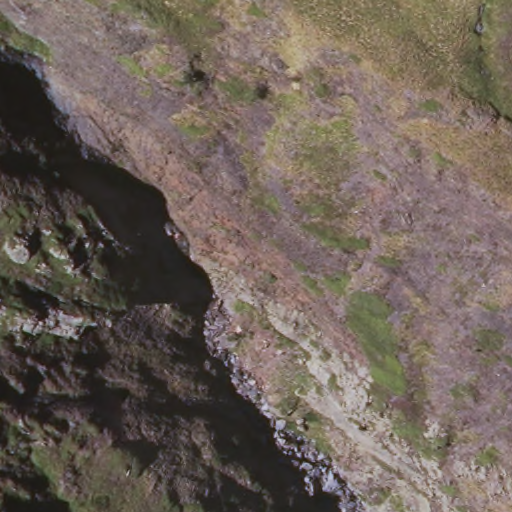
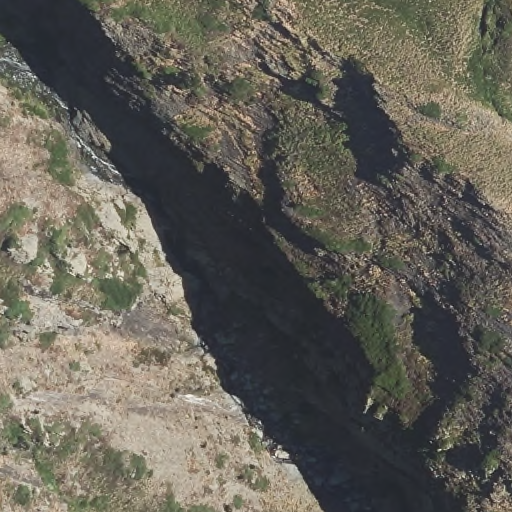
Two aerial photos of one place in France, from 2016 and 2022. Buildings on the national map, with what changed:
[]

